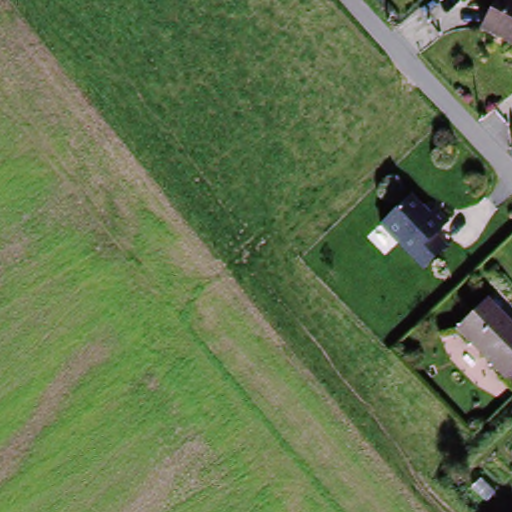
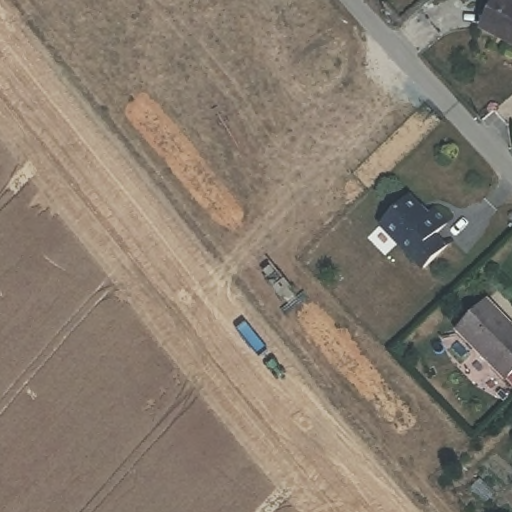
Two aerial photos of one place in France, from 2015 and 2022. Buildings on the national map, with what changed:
unchanged [(494,0),(499,0),(512,7),(512,45),(478,27),(494,0)]
unchanged [(411,197),(429,216),(436,210),(449,223),(435,236),(446,247),(424,270),(381,226),(411,197)]
unchanged [(507,382),(459,334),(490,303),(512,326),(512,387),(507,382)]

